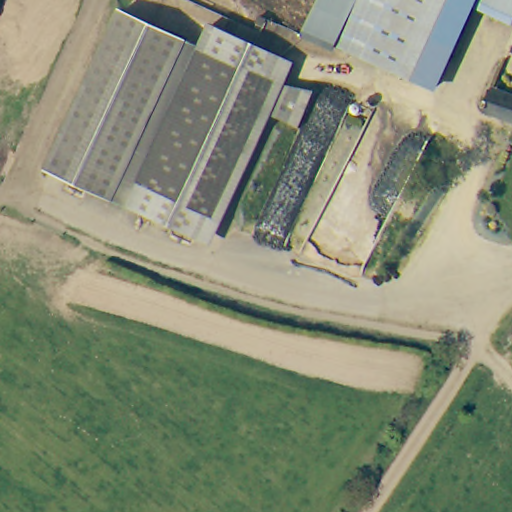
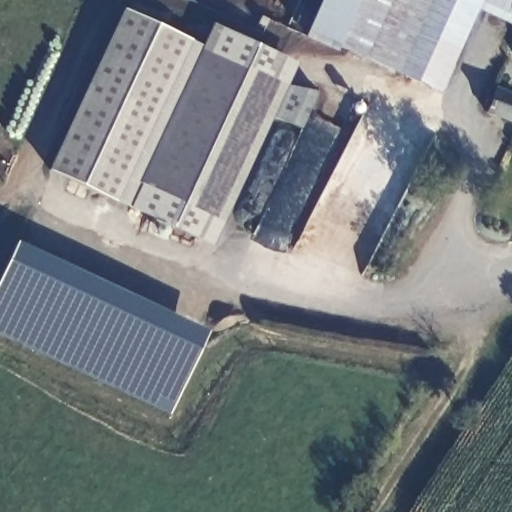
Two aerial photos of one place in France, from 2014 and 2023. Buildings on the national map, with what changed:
unchanged [(320,0),(351,0),(356,3),(338,45),(306,30),(320,0)]
unchanged [(433,88),(338,45),(356,3),(358,0),(512,0),(512,19),(472,1),(433,88)]
unchanged [(131,211),(51,173),(125,14),(205,51),(142,187),(131,211)]
unchanged [(287,85),(314,90),(317,94),(300,129),(273,117),(213,247),(131,211),(142,187),(205,51),(200,49),(211,23),(297,62),(287,85)]
unchanged [(512,43),(512,54),(508,53),(512,43)]
unchanged [(495,96),(497,91),(512,97),(512,121),(480,106),(487,91),(495,96)]
demolished [(484,264),(486,266),(472,306),(433,293),(448,254),(475,210),(482,197),(512,211),(512,222),(505,231),(484,264)]
new [(168,415),(0,337),(0,276),(16,242),(208,331),(168,415)]

